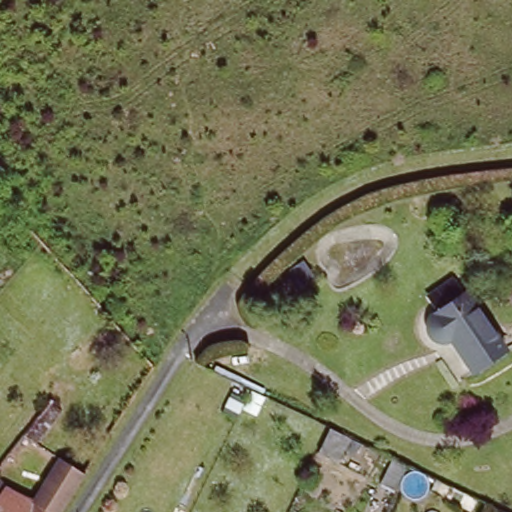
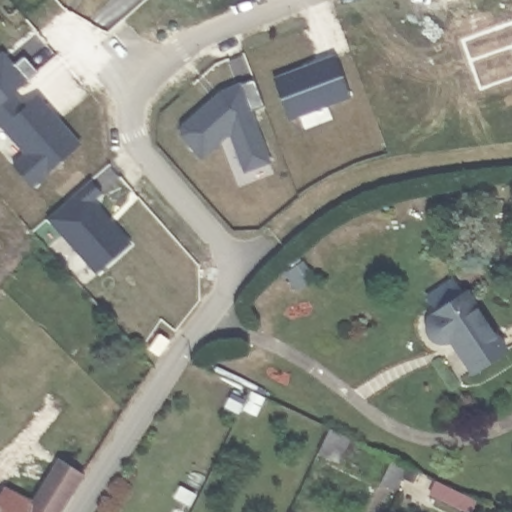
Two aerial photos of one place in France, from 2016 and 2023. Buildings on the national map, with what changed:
new [(14,165),(27,154),(0,124),(0,54),(4,51),(15,65),(26,56),(40,72),(15,93),(27,106),(39,95),(83,143),(34,187),(14,165)]
new [(275,78),(335,56),(350,98),(290,121),(275,78)]
new [(232,136),(228,135),(202,160),(180,135),(182,126),(220,91),(240,83),(242,86),(254,82),(264,106),(251,110),(272,164),(243,174),(232,136)]
new [(50,218),(92,181),(105,194),(95,203),(132,244),(96,275),(50,218)]
unchanged [(496,340),(462,363),(440,329),(437,332),(432,332),(427,332),(422,329),(419,326),(417,320),(416,315),(417,311),(421,307),(425,303),(459,283),(496,340)]
new [(160,333),(170,339),(159,355),(150,349),(160,333)]
unchanged [(324,438),(327,430),(347,439),(335,464),(316,454),(324,438)]
unchanged [(0,512),(0,485),(5,489),(35,448),(82,482),(62,512),(0,512)]
unchanged [(379,484),(390,460),(406,468),(395,491),(379,484)]

